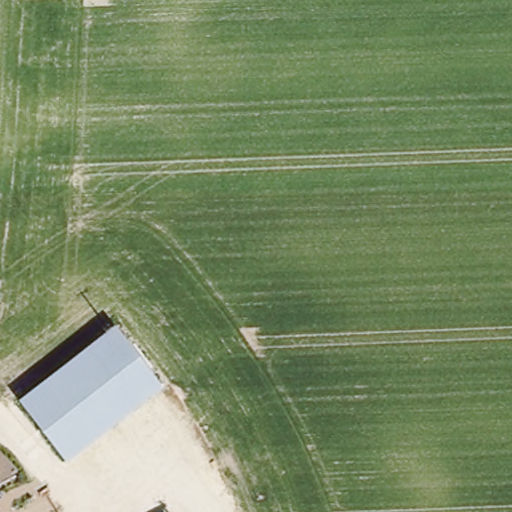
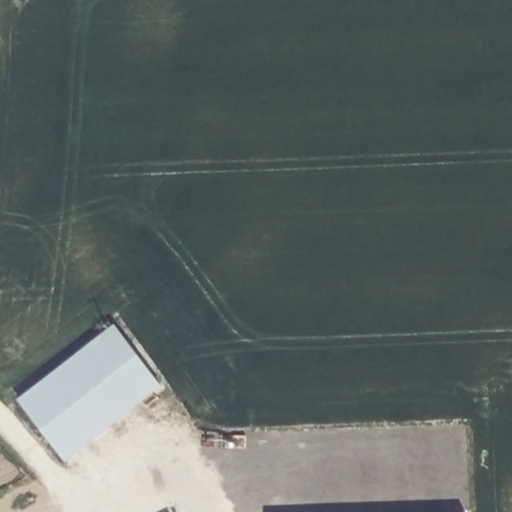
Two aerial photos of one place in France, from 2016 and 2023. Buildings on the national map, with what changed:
unchanged [(117,329),(167,392),(115,429),(75,460),(70,462),(23,403),(45,385),(117,329)]

